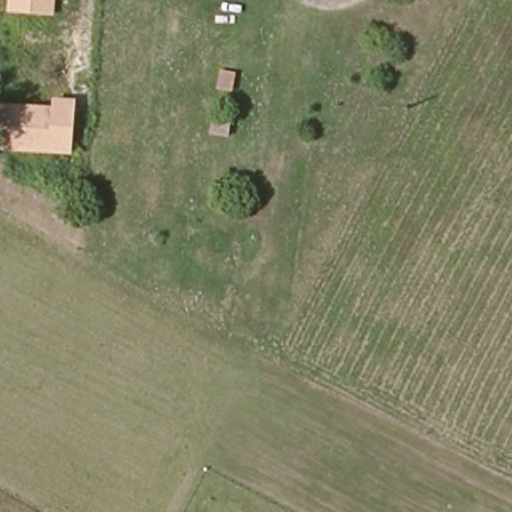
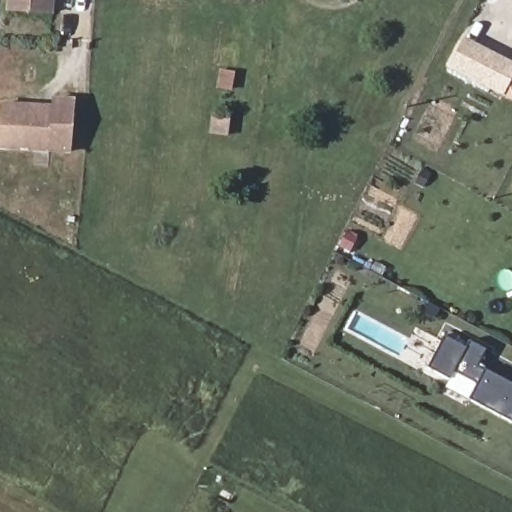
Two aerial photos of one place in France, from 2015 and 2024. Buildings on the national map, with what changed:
unchanged [(6,10),(7,0),(55,0),(53,14),(6,10)]
new [(450,65),(464,36),(512,60),(512,96),(450,65)]
unchanged [(0,149),(0,104),(54,107),(54,99),(76,100),(71,154),(0,149)]
new [(445,334),(467,345),(470,339),(487,348),(477,366),(512,385),(512,420),(510,423),(467,400),(476,385),(453,372),(449,380),(426,368),(445,334)]

